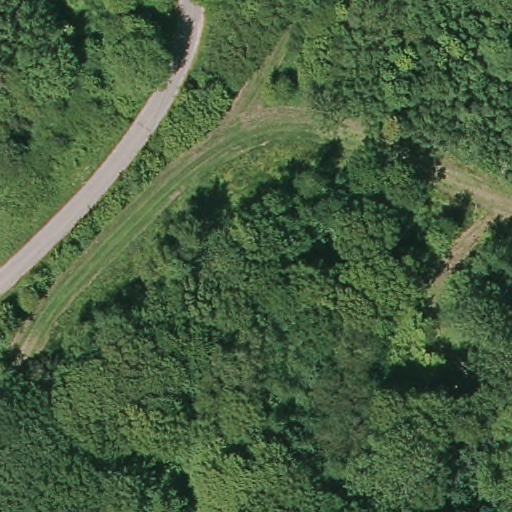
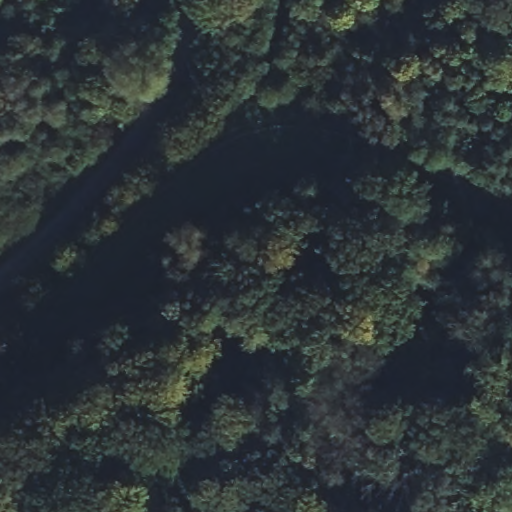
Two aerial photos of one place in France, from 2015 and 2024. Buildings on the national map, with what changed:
[]

